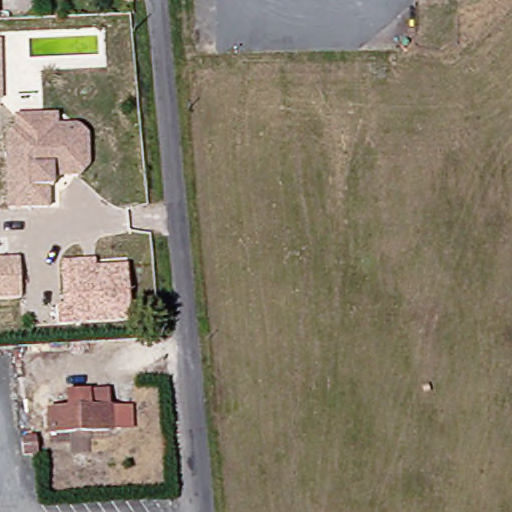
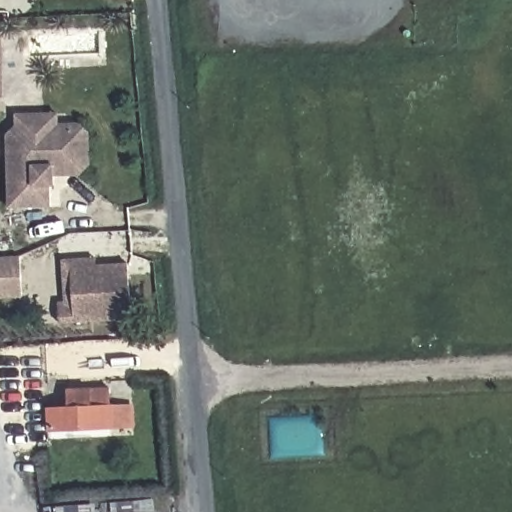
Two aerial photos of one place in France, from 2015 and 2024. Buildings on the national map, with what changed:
unchanged [(1,40),(2,100),(0,100),(0,40),(1,40)]
unchanged [(4,207),(2,135),(10,126),(26,125),(26,115),(50,113),(50,124),(62,124),(72,124),(83,133),(84,164),(75,174),(47,175),(48,186),(44,186),(45,206),(4,207)]
unchanged [(0,299),(0,259),(20,258),(21,298),(0,299)]
unchanged [(57,304),(65,304),(62,260),(95,258),(95,266),(127,265),(129,320),(59,324),(57,304)]
unchanged [(121,433),(100,434),(40,437),(39,413),(59,412),(58,395),(100,393),(100,411),(120,410),(121,433)]
unchanged [(27,458),(14,459),(12,442),(26,440),(27,458)]

